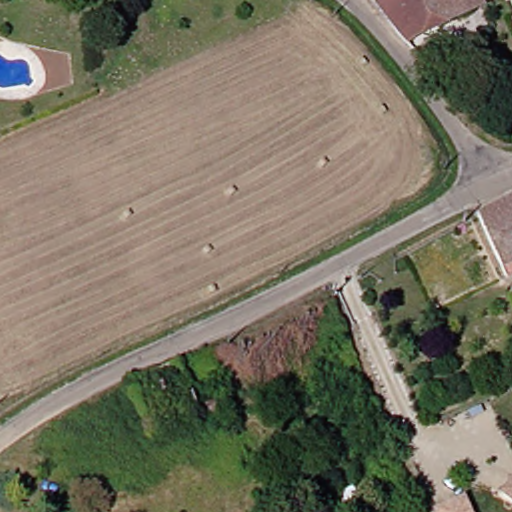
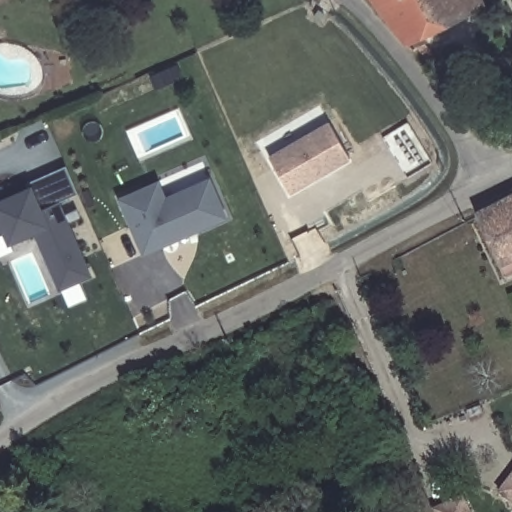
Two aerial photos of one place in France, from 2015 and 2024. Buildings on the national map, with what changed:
unchanged [(467,10),(410,41),(379,0),(461,0),(467,10)]
unchanged [(467,10),(461,0),(486,0),(467,10)]
new [(329,123),(349,158),(289,191),(270,156),(329,123)]
new [(140,190),(147,207),(209,178),(226,216),(141,254),(118,200),(140,190)]
new [(39,211),(57,203),(63,216),(76,210),(79,217),(66,223),(89,276),(61,288),(35,228),(9,240),(5,231),(0,233),(0,203),(30,189),(39,211)]
unchanged [(507,257),(479,210),(512,193),(512,255),(507,257)]
unchanged [(507,257),(512,255),(512,267),(507,257)]
unchanged [(498,490),(512,471),(512,501),(498,490)]
new [(474,512),(434,512),(432,508),(467,495),(474,512)]

